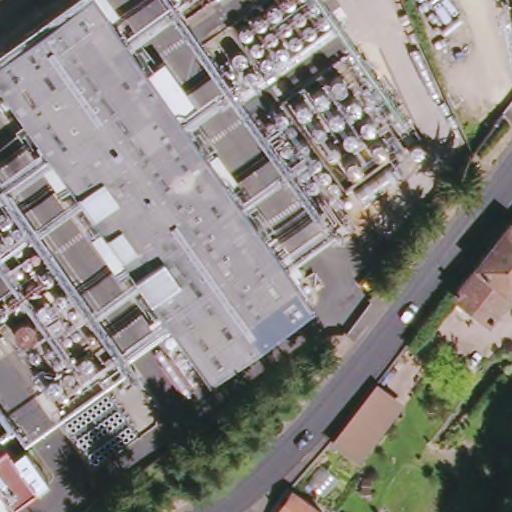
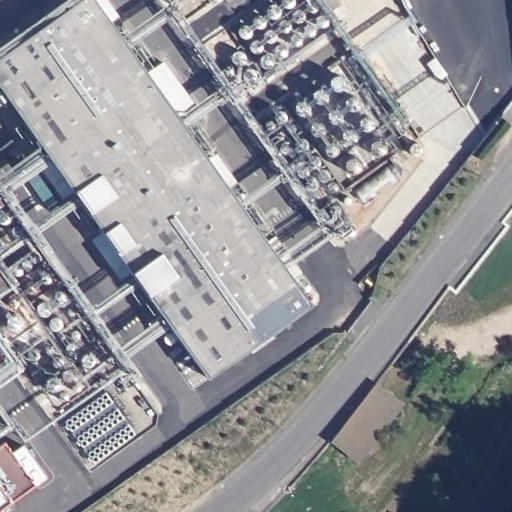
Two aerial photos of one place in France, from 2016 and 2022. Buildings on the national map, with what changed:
unchanged [(317,321),(215,391),(0,82),(0,60),(86,0),(97,0),(317,321)]
unchanged [(0,211),(0,190),(0,191),(7,205),(0,211)]
unchanged [(477,267),(512,223),(512,292),(511,294),(477,267)]
unchanged [(47,266),(0,303),(0,234),(2,236),(32,240),(47,266)]
unchanged [(490,320),(457,295),(477,267),(511,294),(490,320)]
unchanged [(380,389),(406,409),(367,462),(339,441),(380,389)]
unchanged [(13,453),(26,445),(50,477),(37,485),(13,502),(0,512),(0,447),(6,443),(13,453)]
unchanged [(285,512),(297,496),(319,512),(285,512)]

